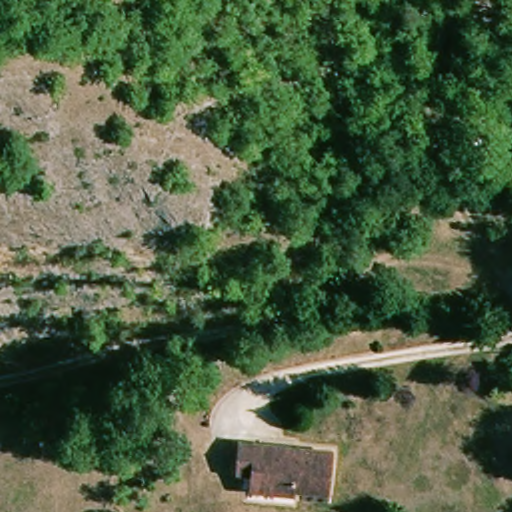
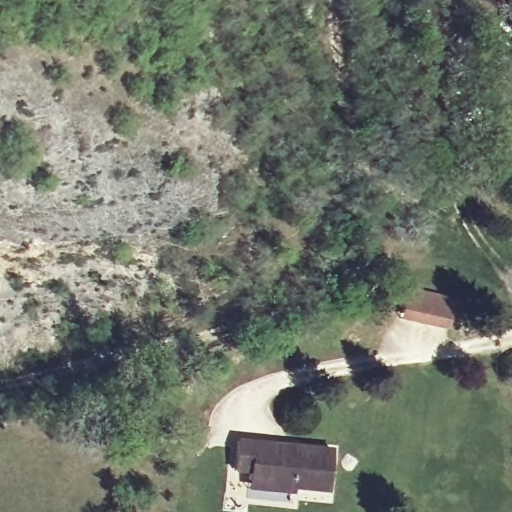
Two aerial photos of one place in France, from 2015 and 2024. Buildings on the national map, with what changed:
new [(454,298),(446,330),(400,320),(406,288),(454,298)]
unchanged [(158,410),(142,406),(150,381),(166,386),(158,410)]
unchanged [(238,473),(242,439),(336,451),(331,495),(300,492),(297,495),(247,490),(250,474),(238,473)]

